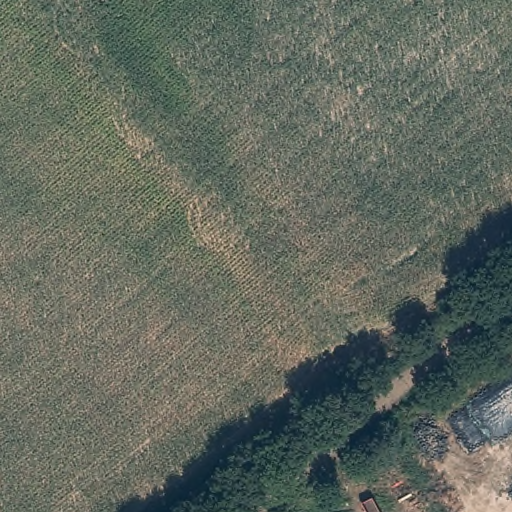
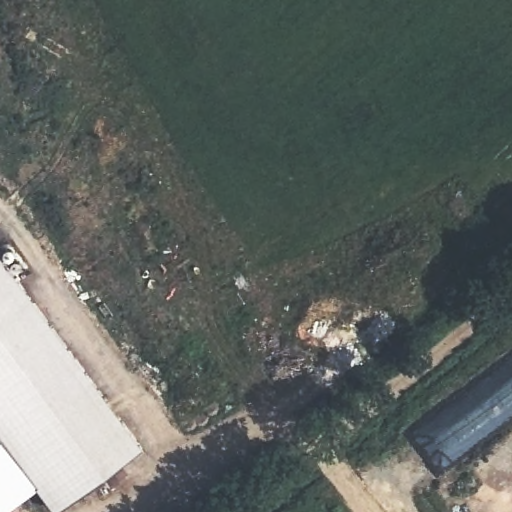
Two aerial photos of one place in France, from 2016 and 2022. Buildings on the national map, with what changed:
new [(56,511),(37,486),(3,512),(0,512),(0,252),(144,445),(56,511)]

